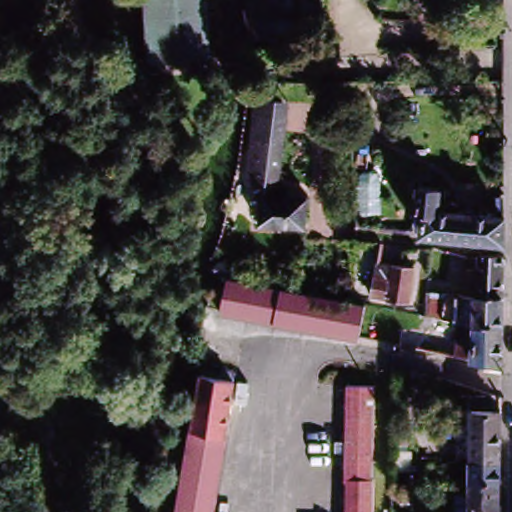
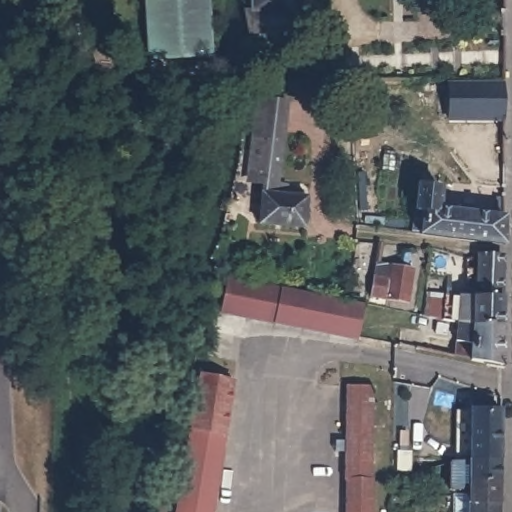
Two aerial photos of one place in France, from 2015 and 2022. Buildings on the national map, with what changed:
unchanged [(147,62),(145,0),(210,0),(212,58),(147,62)]
unchanged [(259,21),(257,0),(294,0),(295,22),(259,21)]
unchanged [(259,21),(295,22),(300,52),(256,51),(251,21),(259,21)]
new [(449,119),(449,82),(504,82),(503,119),(449,119)]
unchanged [(285,187),(310,190),(310,192),(307,214),(307,219),(260,214),(264,176),(257,175),(261,142),(265,101),(287,102),(282,144),(280,172),(287,174),(285,187)]
unchanged [(467,248),(437,245),(415,242),(420,196),(444,198),(441,217),(505,224),(505,251),(467,248)]
unchanged [(345,240),(359,239),(359,241),(345,240)]
unchanged [(405,254),(402,269),(377,266),(379,251),(405,254)]
unchanged [(474,288),(473,282),(461,281),(462,257),(474,257),(474,255),(500,255),(499,297),(473,296),(474,288)]
unchanged [(227,262),(244,265),(240,278),(224,275),(227,262)]
unchanged [(415,276),(409,311),(372,305),(377,271),(415,276)]
unchanged [(365,307),(357,342),(220,314),(227,279),(365,307)]
unchanged [(437,321),(437,297),(473,296),(499,297),(499,325),(452,324),(437,321)]
unchanged [(452,324),(499,325),(499,363),(450,354),(452,324)]
unchanged [(234,382),(216,512),(168,512),(195,377),(234,382)]
unchanged [(350,391),(377,391),(374,467),(347,466),(350,391)]
unchanged [(460,417),(476,417),(477,403),(490,403),(490,407),(499,408),(498,417),(506,417),(505,468),(475,467),(474,465),(474,464),(459,463),(460,417)]
unchanged [(374,467),(374,484),(379,485),(378,512),(349,512),(350,485),(347,484),(347,466),(374,467)]
unchanged [(505,510),(472,511),(475,467),(505,468),(505,510)]
unchanged [(472,511),(505,510),(504,512),(472,512),(472,511)]

